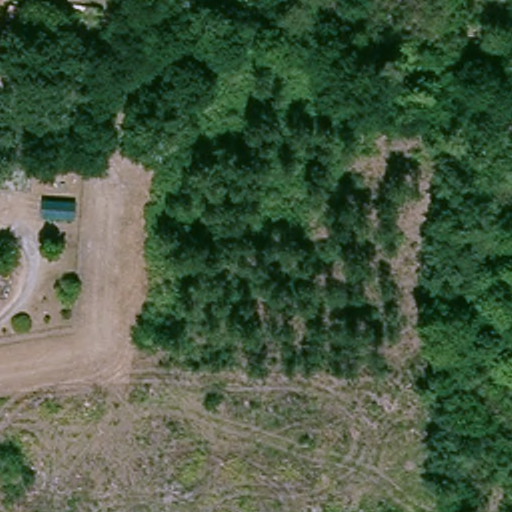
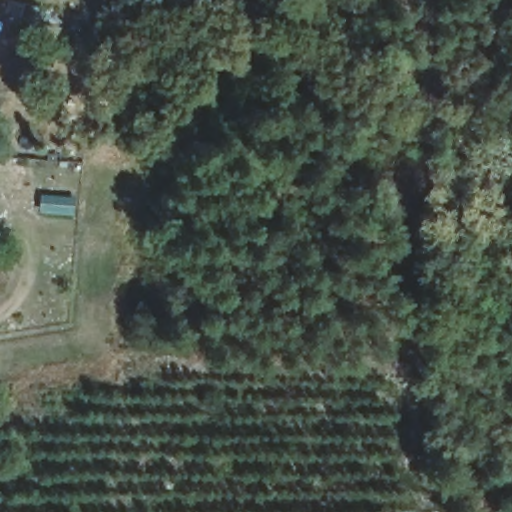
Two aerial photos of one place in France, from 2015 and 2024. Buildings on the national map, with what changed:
unchanged [(81,11),(81,0),(99,0),(99,11),(81,11)]

